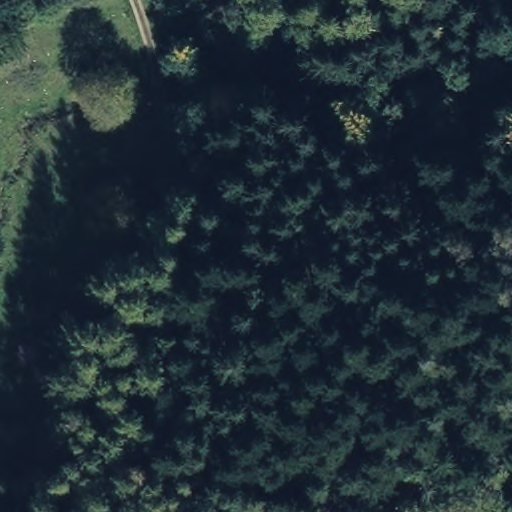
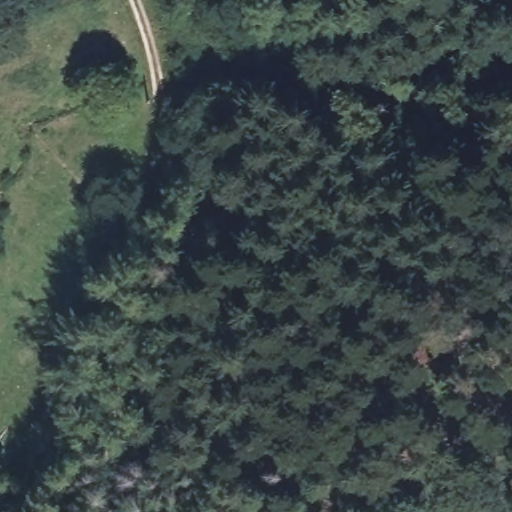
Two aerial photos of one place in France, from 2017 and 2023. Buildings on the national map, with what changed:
[]

